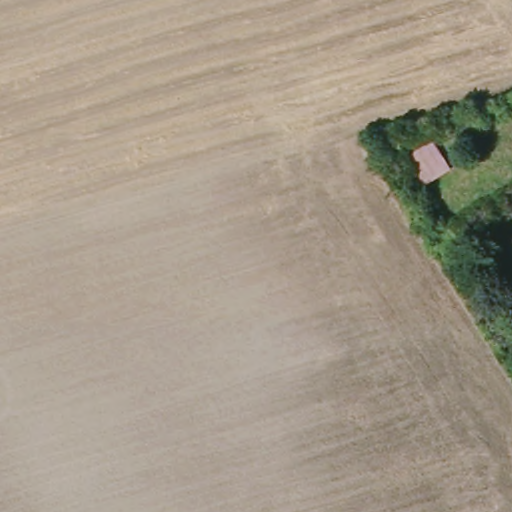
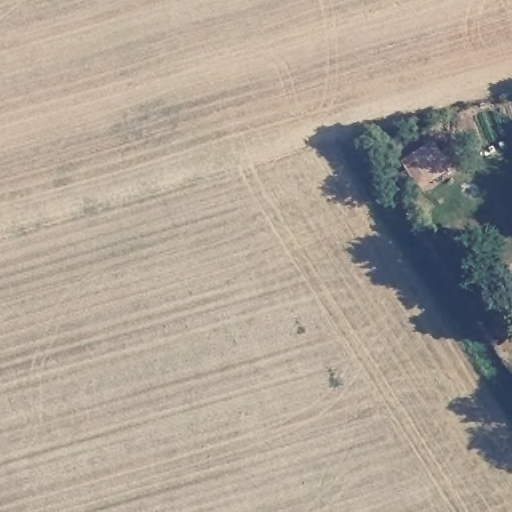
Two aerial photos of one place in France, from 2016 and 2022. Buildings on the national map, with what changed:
unchanged [(448,172),(410,195),(394,163),(430,136),(448,172)]

